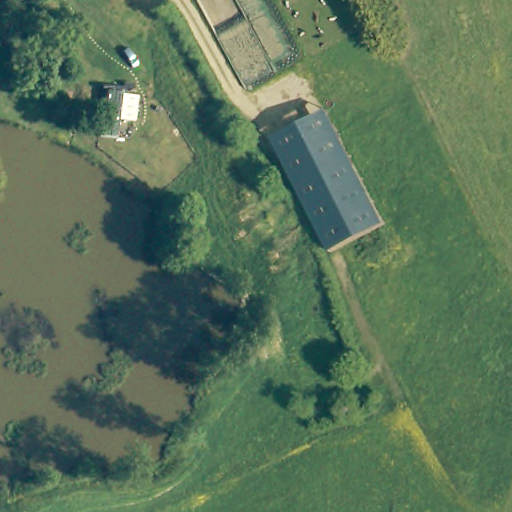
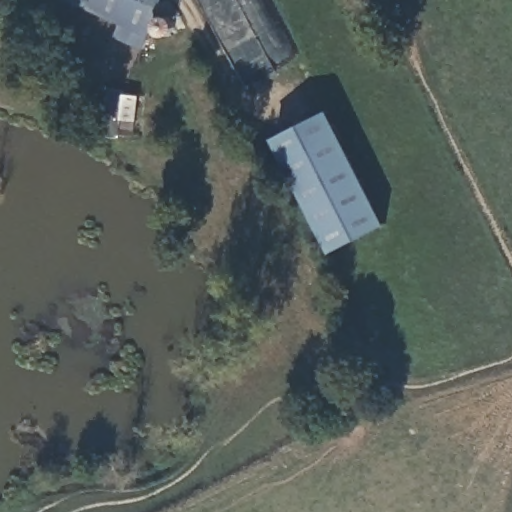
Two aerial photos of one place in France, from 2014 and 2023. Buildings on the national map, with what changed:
new [(144,51),(114,39),(120,23),(69,0),(166,0),(151,35),(144,51)]
unchanged [(273,138),(329,111),(387,226),(329,253),(273,138)]

